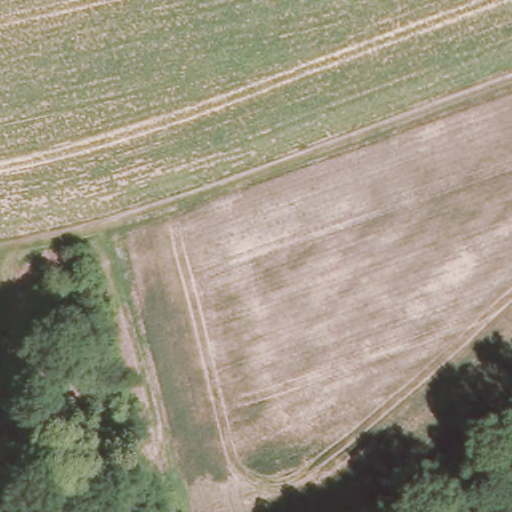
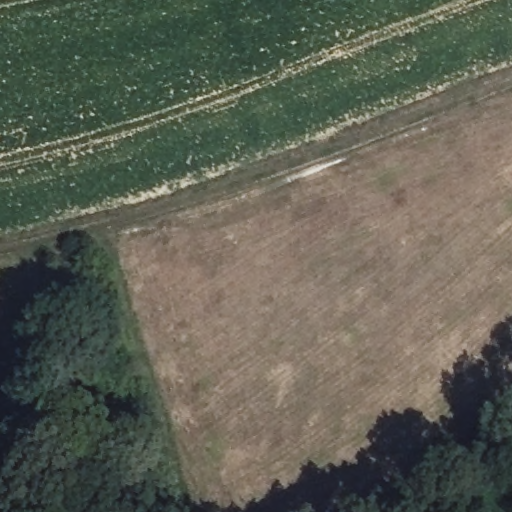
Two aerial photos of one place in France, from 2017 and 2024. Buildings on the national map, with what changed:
unchanged [(52,450),(75,450),(73,482),(51,482),(52,450)]
unchanged [(10,458),(22,458),(21,482),(10,482),(10,458)]

